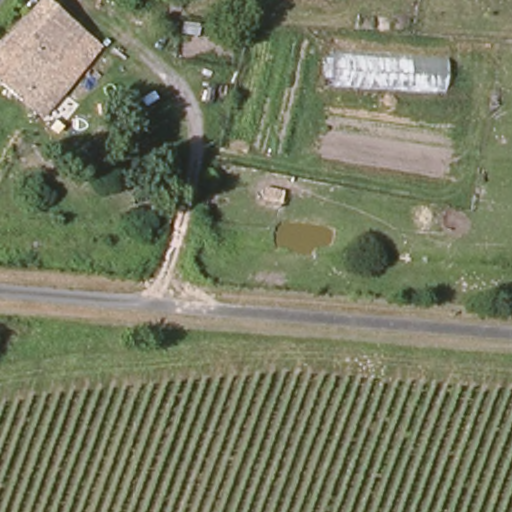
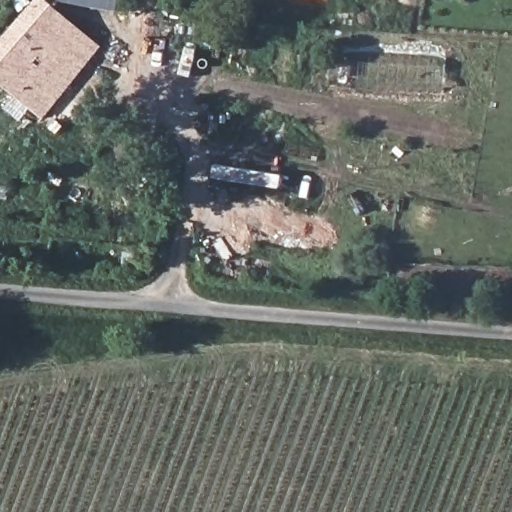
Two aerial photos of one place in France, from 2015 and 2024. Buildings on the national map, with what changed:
unchanged [(41,119),(0,85),(0,53),(34,18),(46,3),(77,31),(102,52),(41,119)]

